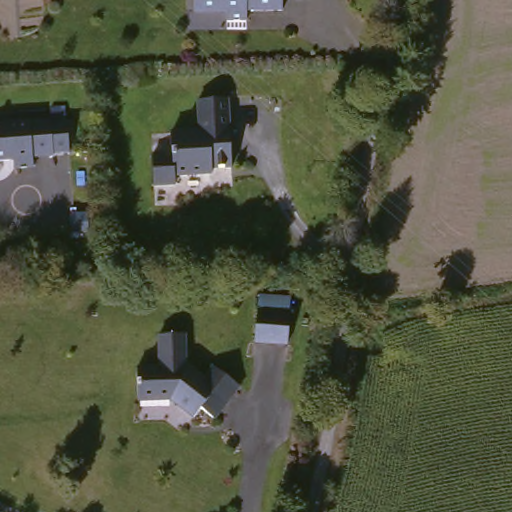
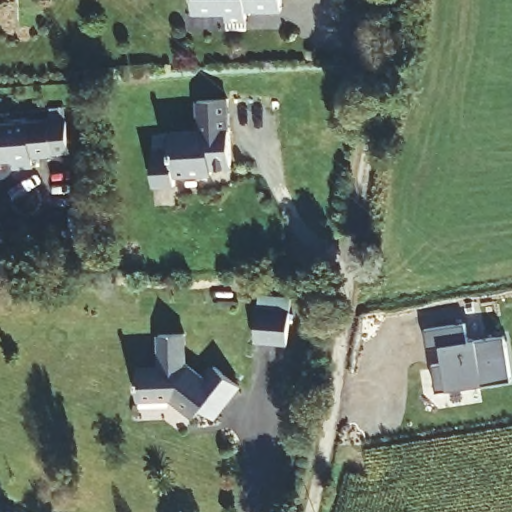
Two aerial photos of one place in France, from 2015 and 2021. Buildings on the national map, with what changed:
unchanged [(276,25),(241,22),(240,32),(220,30),(221,21),(189,19),(190,0),(278,0),(276,25)]
unchanged [(200,125),(198,95),(227,92),(233,161),(213,162),(214,167),(178,170),(179,179),(158,181),(156,151),(174,150),(172,127),(200,125)]
unchanged [(51,114),(53,151),(33,152),(33,162),(14,163),(11,155),(0,155),(0,117),(51,114)]
unchanged [(254,347),(256,315),(257,299),(288,302),(287,317),(286,350),(254,347)]
new [(506,343),(512,376),(512,388),(439,400),(434,372),(444,372),(442,355),(429,357),(426,337),(467,331),(470,350),(506,343)]
unchanged [(183,338),(184,369),(205,385),(213,373),(235,389),(211,423),(199,414),(194,421),(169,403),(137,404),(136,371),(156,371),(155,338),(183,338)]

